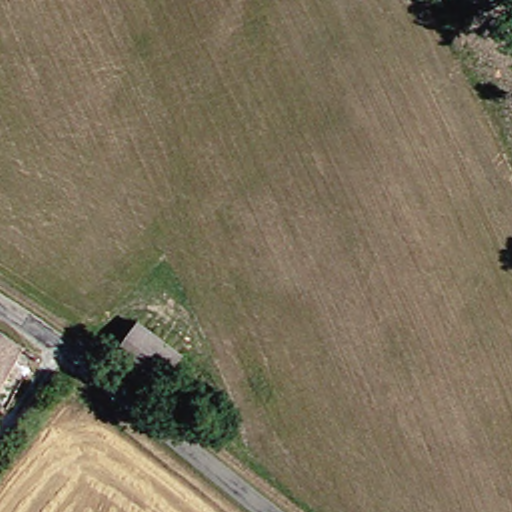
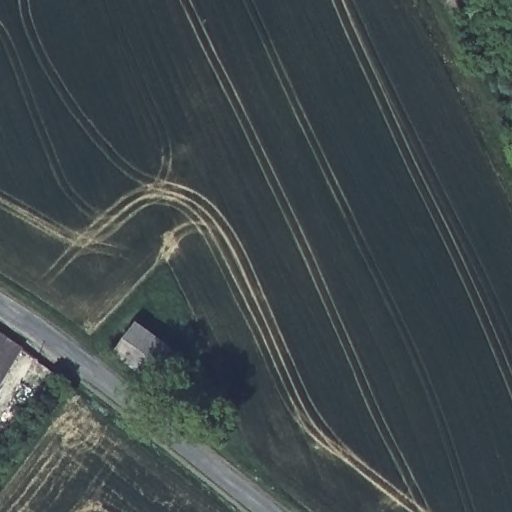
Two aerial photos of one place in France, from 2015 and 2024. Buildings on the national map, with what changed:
unchanged [(161,385),(124,355),(145,325),(186,358),(161,385)]
unchanged [(0,335),(26,348),(0,390),(0,335)]

